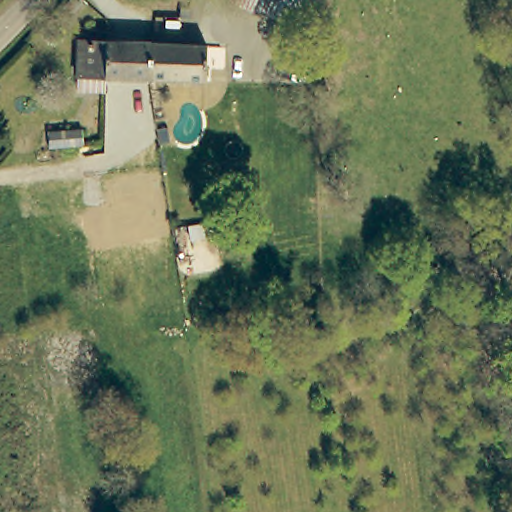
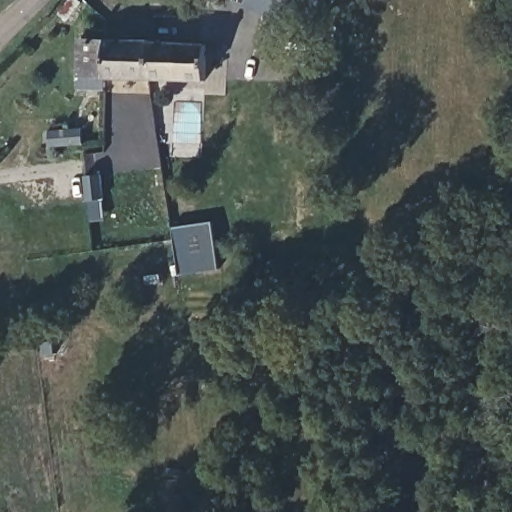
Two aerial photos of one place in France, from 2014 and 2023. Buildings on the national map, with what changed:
unchanged [(277,19),(225,0),(284,0),(277,19)]
unchanged [(320,29),(277,19),(284,0),(326,0),(320,29)]
unchanged [(77,75),(77,41),(102,42),(150,42),(150,45),(150,78),(149,78),(101,76),(102,90),(77,89),(77,75)]
unchanged [(206,80),(161,79),(150,78),(150,45),(207,47),(206,80)]
unchanged [(37,150),(34,127),(81,120),(85,144),(37,150)]
unchanged [(164,135),(152,137),(151,127),(162,125),(164,135)]
new [(86,218),(84,198),(81,175),(95,173),(98,197),(100,216),(86,218)]
new [(211,222),(219,270),(191,274),(179,276),(171,229),(183,227),(211,222)]

